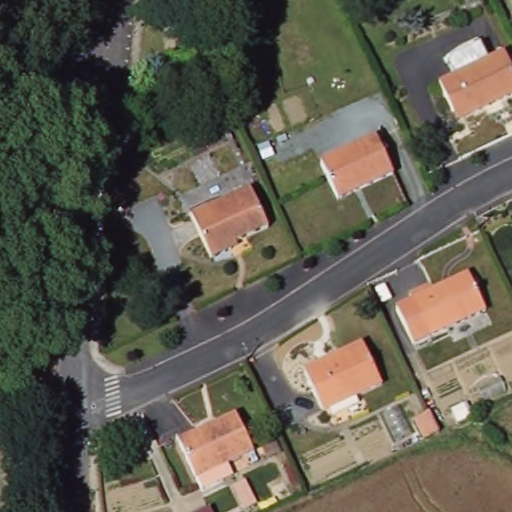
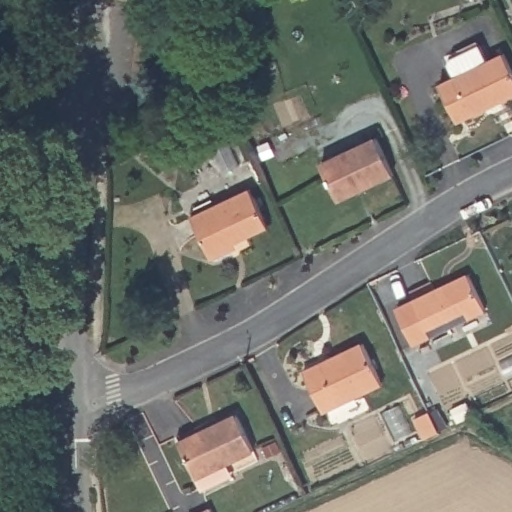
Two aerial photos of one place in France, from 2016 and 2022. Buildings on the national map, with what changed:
unchanged [(507,55),(512,66),(512,100),(462,124),(443,84),(460,77),(507,55)]
unchanged [(380,137),(399,178),(342,205),(322,165),(380,137)]
unchanged [(225,197),(227,201),(252,188),(271,224),(232,243),(233,247),(216,256),(194,212),(225,197)]
unchanged [(472,272),(490,306),(419,342),(401,306),(472,272)]
unchanged [(332,354),(334,359),(365,344),(384,382),(325,411),(304,367),(332,354)]
unchanged [(432,412),(441,430),(427,437),(418,419),(432,412)]
unchanged [(239,417),(257,453),(195,482),(179,446),(239,417)]

